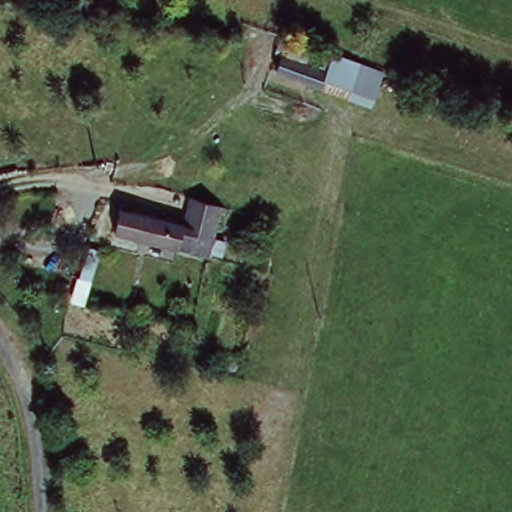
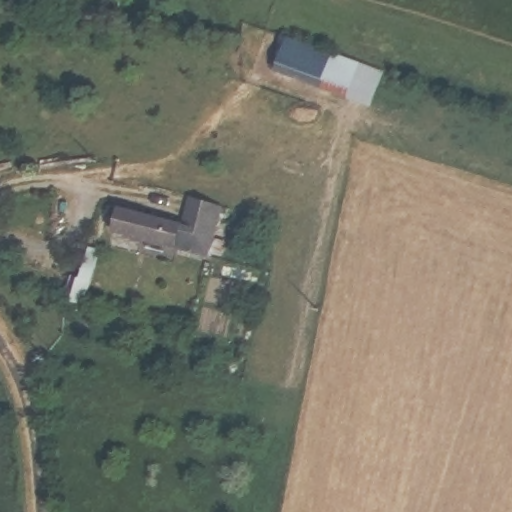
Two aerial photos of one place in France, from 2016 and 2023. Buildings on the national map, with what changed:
unchanged [(273,72),(286,36),(382,75),(371,113),(273,72)]
unchanged [(212,251),(112,226),(119,202),(183,215),(191,192),(226,202),(212,251)]
unchanged [(80,265),(99,271),(91,305),(69,298),(80,265)]

